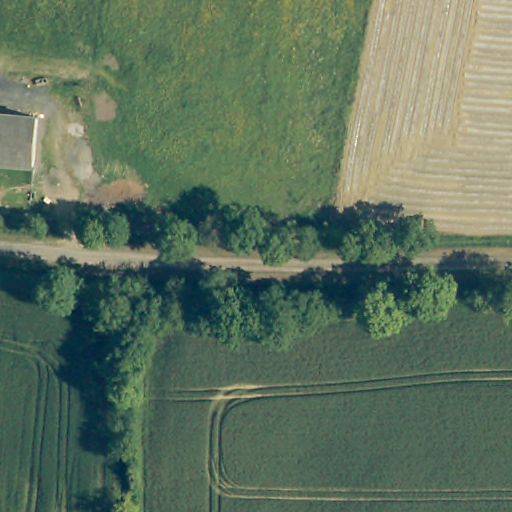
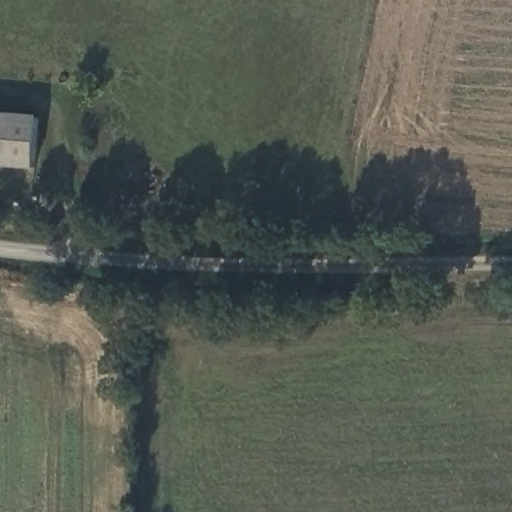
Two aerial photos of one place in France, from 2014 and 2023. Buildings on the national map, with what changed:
unchanged [(6,167),(0,167),(0,118),(12,119),(6,167)]
unchanged [(31,170),(6,167),(12,119),(37,122),(31,170)]

